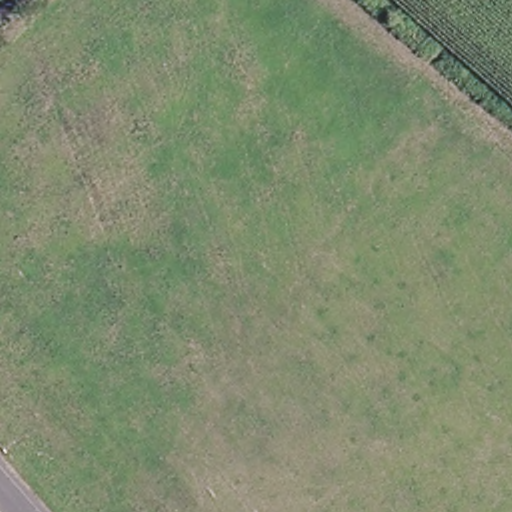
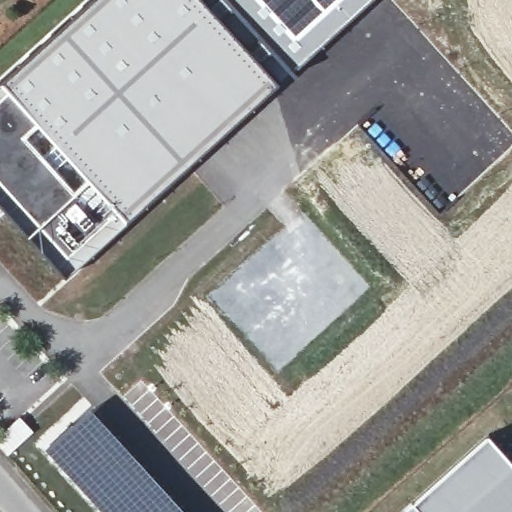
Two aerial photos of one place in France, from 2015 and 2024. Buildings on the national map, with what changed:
new [(65,275),(0,204),(0,82),(92,0),(200,0),(275,83),(65,275)]
new [(299,63),(239,0),(367,0),(299,63)]
new [(194,512),(111,512),(48,443),(94,402),(194,512)]
new [(512,512),(400,512),(413,500),(488,433),(512,460),(512,512)]

